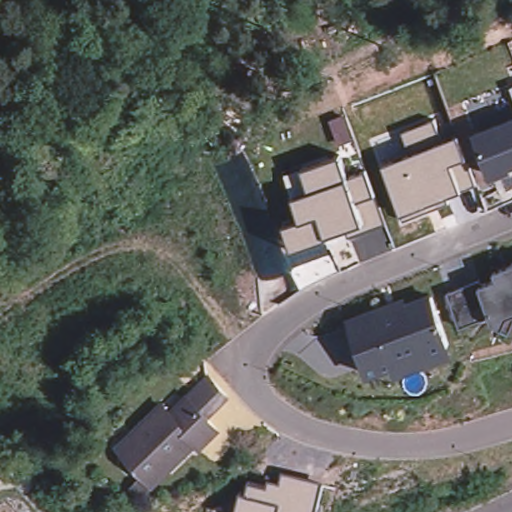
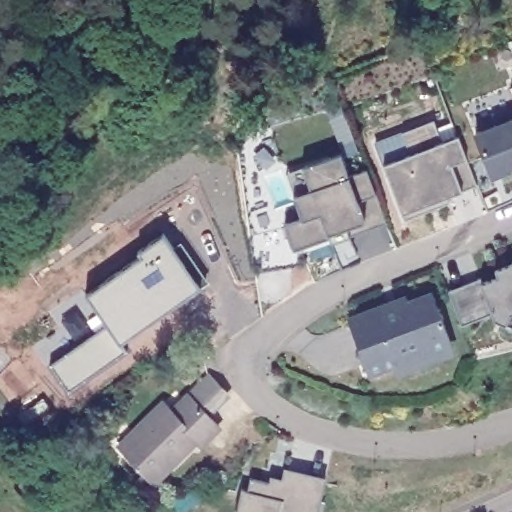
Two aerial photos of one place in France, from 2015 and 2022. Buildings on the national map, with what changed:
unchanged [(477,128),(512,114),(512,162),(493,169),(477,128)]
unchanged [(461,189),(448,195),(448,202),(405,218),(403,210),(401,210),(385,163),(412,153),(402,134),(433,122),(442,142),(457,135),(466,158),(475,185),(461,189)]
unchanged [(285,222),(302,216),(294,193),(287,173),(303,167),(340,155),(347,177),(365,171),(373,195),(375,194),(383,223),(350,235),(348,225),(328,233),(294,246),(285,222)]
new [(171,248),(180,243),(207,280),(200,288),(124,340),(128,350),(70,390),(50,363),(105,321),(85,293),(141,257),(137,252),(162,236),(171,248)]
unchanged [(477,273),(479,277),(494,271),(492,264),(508,258),(512,256),(512,315),(510,321),(491,313),(488,307),(481,310),(458,319),(445,285),(473,275),(477,273)]
unchanged [(427,363),(401,372),(398,367),(397,362),(368,372),(350,320),(390,305),(393,312),(407,307),(406,304),(434,294),(451,342),(423,352),(425,359),(427,363)]
unchanged [(112,450),(125,437),(155,410),(162,417),(180,401),(201,380),(220,400),(198,420),(205,428),(210,433),(192,450),(187,447),(145,486),(117,456),(115,455),(112,450)]
unchanged [(249,490),(251,477),(270,482),(272,475),(283,477),(285,468),(325,477),(319,501),(325,503),(322,512),(237,512),(242,488),(249,490)]
unchanged [(143,489),(133,499),(124,489),(134,479),(143,489)]

